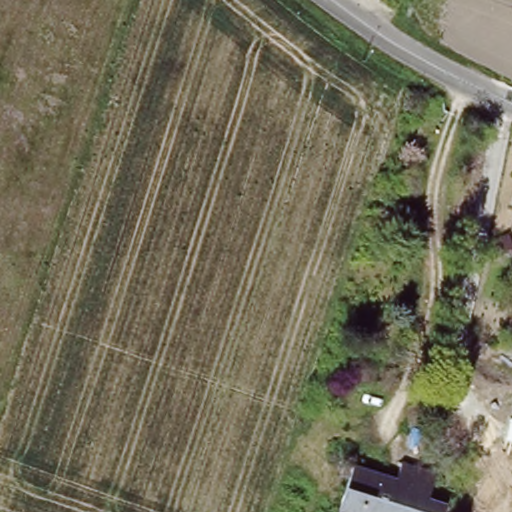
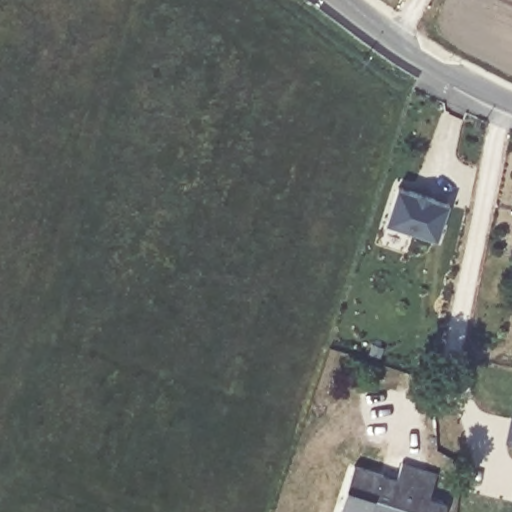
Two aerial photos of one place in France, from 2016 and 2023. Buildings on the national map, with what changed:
new [(398,187),(449,204),(437,240),(386,223),(398,187)]
new [(511,419),(512,420),(512,442),(507,440),(511,419)]
unchanged [(392,488),(400,463),(435,474),(427,498),(445,506),(443,512),(344,512),(337,509),(352,465),(382,475),(379,483),(392,488)]

